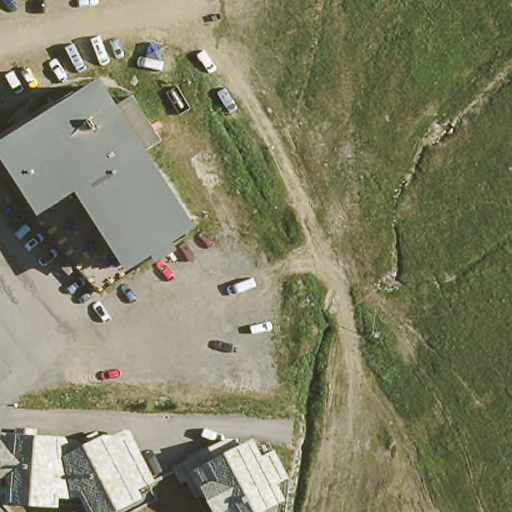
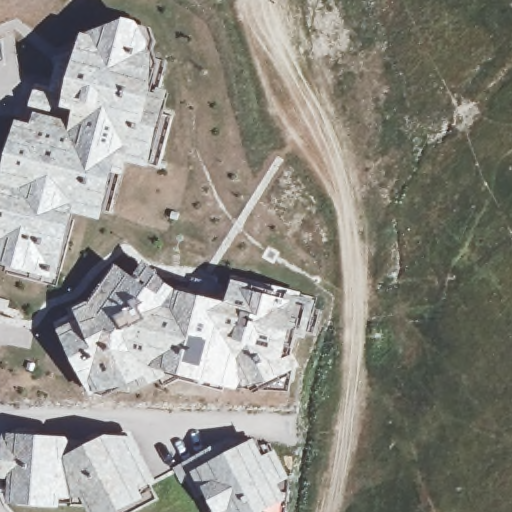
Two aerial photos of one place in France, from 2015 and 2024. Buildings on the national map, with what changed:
new [(5,172),(18,121),(25,122),(35,85),(52,88),(57,61),(75,65),(85,33),(125,20),(139,24),(152,27),(157,42),(153,51),(160,66),(156,85),(170,89),(150,167),(127,162),(124,176),(113,174),(102,219),(73,212),(58,278),(47,275),(46,281),(7,271),(8,265),(0,264),(0,172),(5,172)]
demolished [(144,262),(146,265),(111,290),(0,168),(0,143),(57,105),(63,114),(104,86),(119,106),(137,95),(169,141),(152,153),(201,222),(144,262)]
new [(180,214),(178,220),(170,219),(172,212),(180,214)]
new [(56,322),(77,313),(76,310),(92,303),(117,264),(137,278),(145,260),(180,291),(227,302),(232,280),(233,275),(302,292),(300,296),(316,301),(307,338),(300,336),(295,349),(303,367),(291,371),(292,375),(283,380),(263,390),(255,394),(253,391),(251,386),(240,391),(166,370),(169,376),(136,393),(119,392),(107,398),(98,394),(92,397),(56,322)]
new [(10,301),(6,312),(0,310),(0,298),(10,301)]
unchanged [(77,439),(77,451),(107,435),(136,437),(160,488),(145,496),(147,501),(124,512),(92,512),(88,504),(75,507),(4,502),(5,485),(0,484),(6,431),(77,439)]
unchanged [(238,437),(245,446),(261,437),(272,455),(277,450),(294,482),(284,512),(211,512),(182,464),(238,437)]

